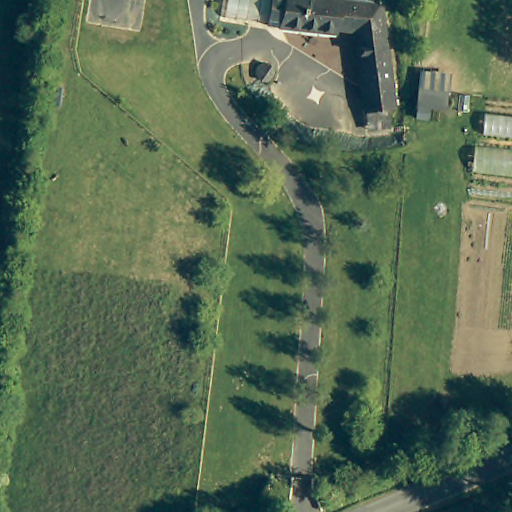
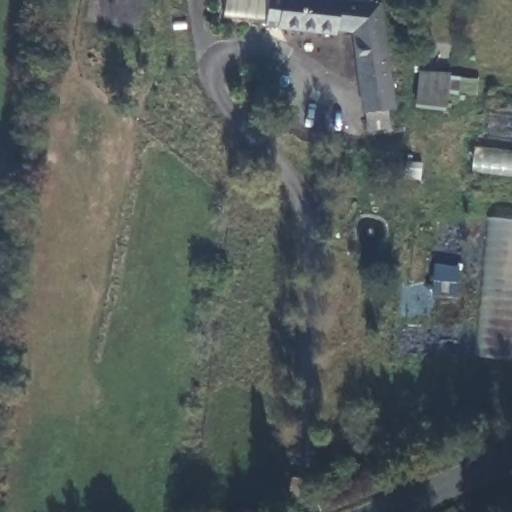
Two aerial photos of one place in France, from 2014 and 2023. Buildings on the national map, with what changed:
unchanged [(284,20),(268,17),(270,0),(287,0),(284,20)]
unchanged [(339,30),(339,36),(283,25),(284,20),(287,0),(387,0),(388,22),(396,108),(366,111),(364,93),(357,31),(339,30)]
unchanged [(269,75),(267,77),(263,78),(259,77),(255,75),(254,72),(253,68),(254,64),(257,61),(260,59),(264,59),(267,60),(270,63),(271,67),(271,71),(269,75)]
new [(457,93),(449,92),(447,112),(428,110),(427,119),(414,118),(419,68),(450,72),(450,76),(461,77),(457,93)]
demolished [(446,86),(446,108),(412,106),(412,88),(446,86)]
new [(490,216),(512,218),(512,359),(477,355),(490,216)]

